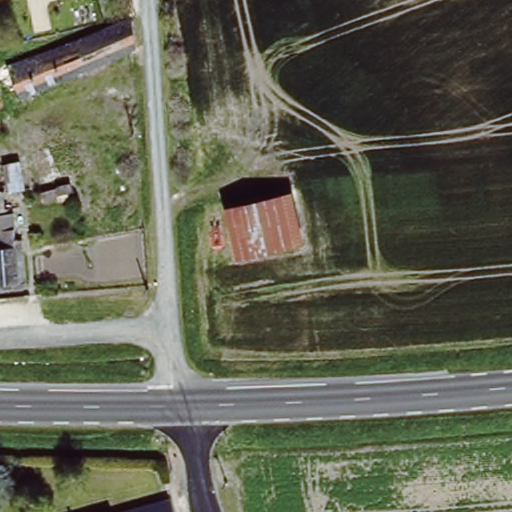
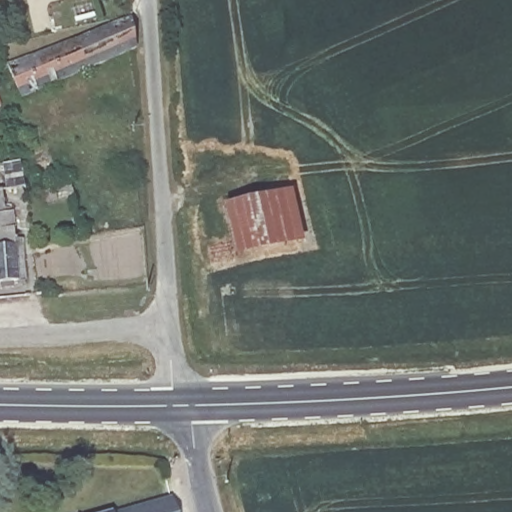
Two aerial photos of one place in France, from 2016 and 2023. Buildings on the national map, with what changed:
unchanged [(138,51),(10,99),(0,71),(0,68),(127,21),(138,51)]
unchanged [(23,189),(5,192),(2,166),(20,164),(23,189)]
unchanged [(72,196),(60,200),(57,187),(69,185),(72,196)]
unchanged [(4,213),(13,212),(15,229),(20,229),(25,281),(0,281),(0,192),(2,192),(4,213)]
unchanged [(294,200),(302,248),(237,262),(226,211),(294,200)]
unchanged [(171,503),(174,512),(143,512),(171,503)]

